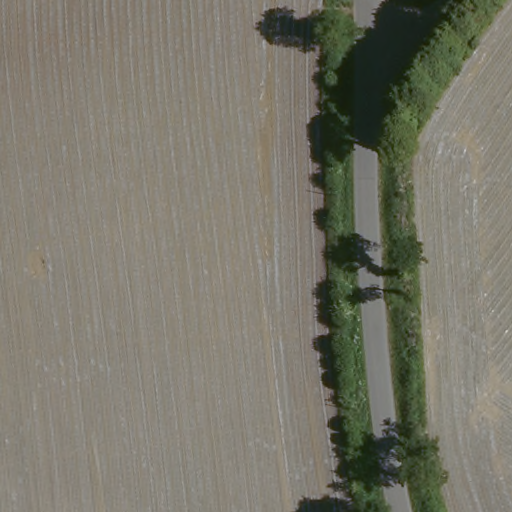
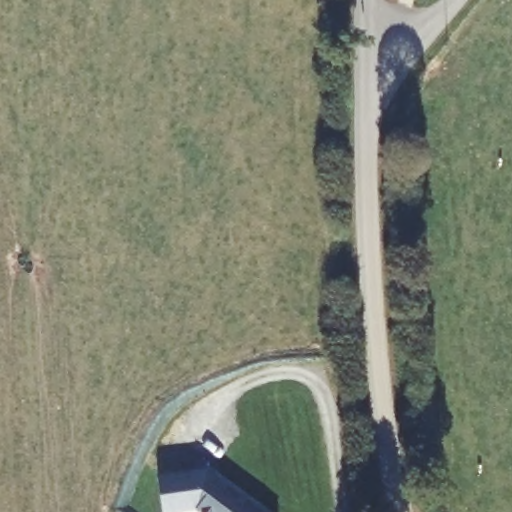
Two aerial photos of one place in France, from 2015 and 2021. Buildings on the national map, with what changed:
new [(205,459),(207,469),(220,477),(219,477),(267,512),(201,512),(195,508),(164,512),(159,474),(195,470),(194,460),(205,459)]

